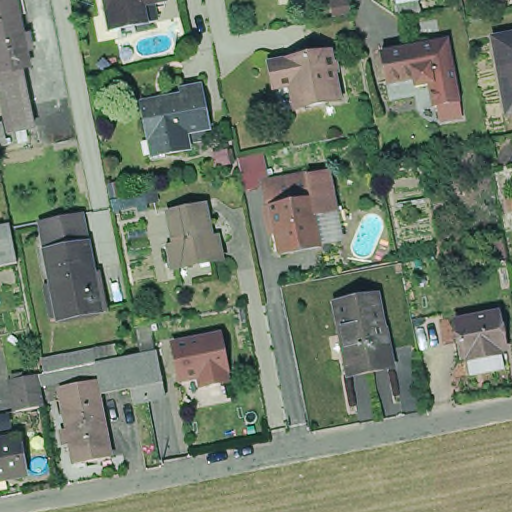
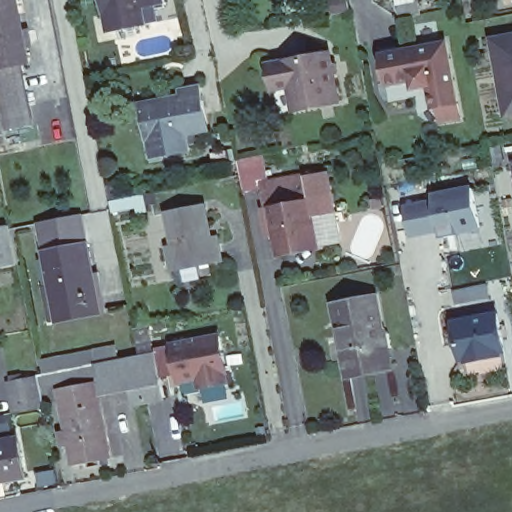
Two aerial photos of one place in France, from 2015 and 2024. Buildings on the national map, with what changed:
unchanged [(28,38),(22,39),(25,56),(18,57),(0,61),(0,0),(14,0),(15,6),(19,25),(25,23),(28,38)]
unchanged [(111,0),(151,0),(154,17),(126,23),(116,25),(113,7),(111,0)]
unchanged [(399,0),(420,0),(423,12),(402,16),(399,0)]
unchanged [(378,49),(444,36),(457,108),(457,110),(438,114),(438,112),(436,100),(432,101),(417,103),(414,86),(386,92),(383,77),(378,49)]
unchanged [(509,119),(494,42),(512,39),(512,118),(509,119)]
unchanged [(351,99),(309,107),(293,111),(288,88),(284,65),(342,54),(351,99)]
unchanged [(4,123),(0,103),(0,61),(18,57),(29,118),(4,123)]
unchanged [(153,137),(148,102),(189,94),(188,87),(208,84),(216,127),(193,132),(196,148),(168,153),(157,155),(153,137)]
unchanged [(268,196),(271,195),(268,177),(283,174),(281,167),(304,163),(304,166),(326,162),(338,228),(316,232),(276,240),(268,196)]
new [(444,237),(444,234),(443,228),(413,234),(408,207),(437,201),(436,195),(475,188),(483,227),(461,231),(462,234),(444,237)]
unchanged [(208,210),(214,242),(219,241),(223,263),(174,273),(170,251),(176,250),(169,217),(208,210)]
unchanged [(90,243),(48,251),(43,221),(84,213),(90,243)]
unchanged [(0,267),(0,225),(5,223),(6,227),(13,264),(0,267)]
unchanged [(90,243),(103,311),(61,319),(48,251),(90,243)]
unchanged [(391,372),(375,375),(361,306),(378,303),(391,372)]
unchanged [(349,380),(336,310),(361,306),(375,375),(349,380)]
unchanged [(507,344),(502,345),(504,354),(469,360),(468,351),(462,352),(456,317),(499,308),(507,344)]
unchanged [(221,330),(228,366),(226,367),(228,376),(202,382),(200,372),(181,376),(173,340),(221,330)]
unchanged [(75,465),(64,399),(58,362),(164,344),(172,390),(108,401),(118,458),(75,465)]
unchanged [(11,406),(8,380),(42,374),(41,366),(58,362),(64,399),(11,406)]
unchanged [(18,477),(0,480),(0,440),(11,438),(18,477)]

